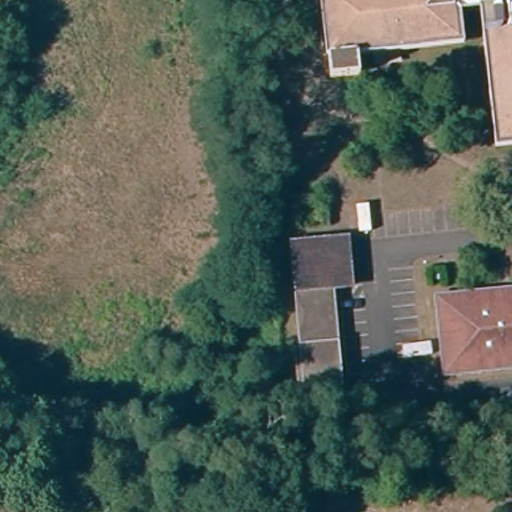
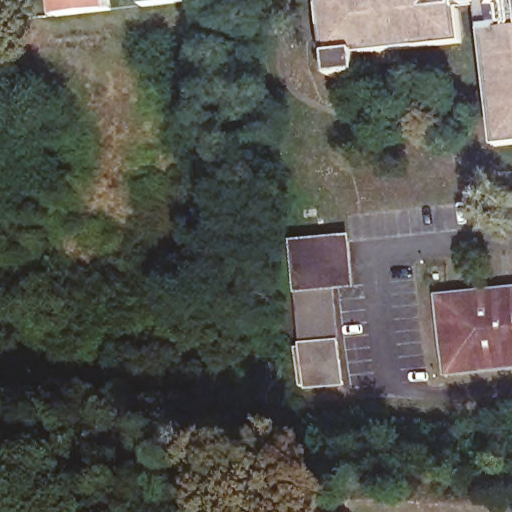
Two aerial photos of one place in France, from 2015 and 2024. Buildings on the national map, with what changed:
new [(51,15),(49,0),(105,0),(106,8),(51,15)]
new [(140,0),(185,0),(140,5),(140,0)]
unchanged [(494,133),(480,0),(457,4),(460,35),(454,37),(356,49),(358,69),(328,71),(325,51),(319,51),(314,0),(512,0),(512,131),(494,133)]
unchanged [(299,283),(295,235),(346,229),(352,277),(335,280),(299,283)]
unchanged [(312,371),(303,371),(299,335),(307,331),(299,283),(335,280),(348,376),(314,380),(312,371)]
unchanged [(512,285),(512,363),(452,372),(449,367),(439,295),(512,285)]

